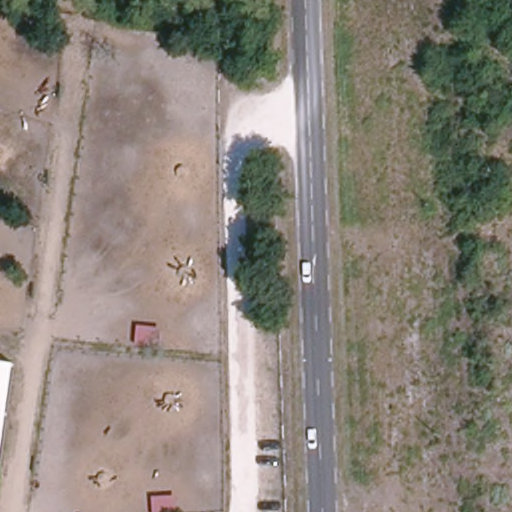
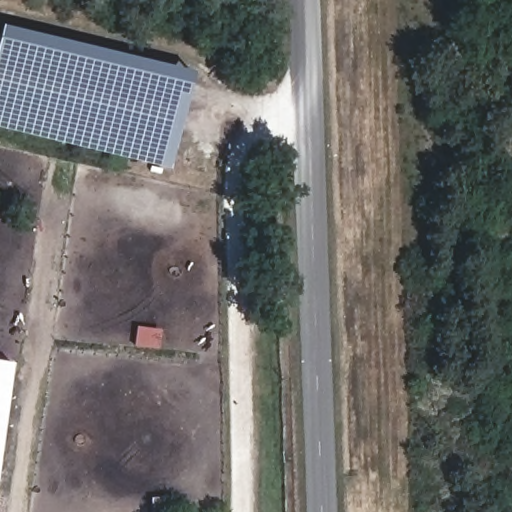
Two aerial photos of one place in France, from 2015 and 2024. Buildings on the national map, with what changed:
new [(172,169),(0,128),(0,37),(3,27),(194,73),(172,169)]
unchanged [(0,486),(0,363),(17,365),(0,486)]

